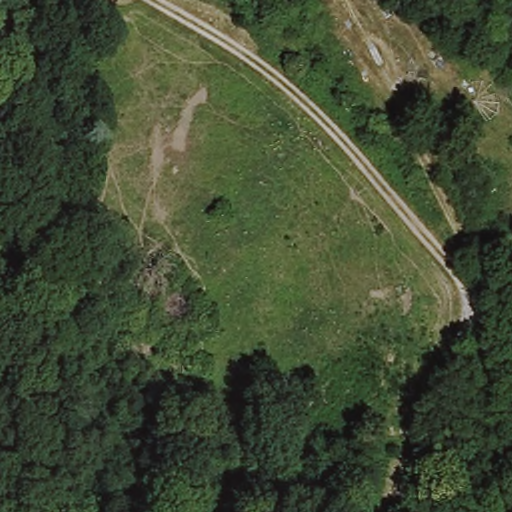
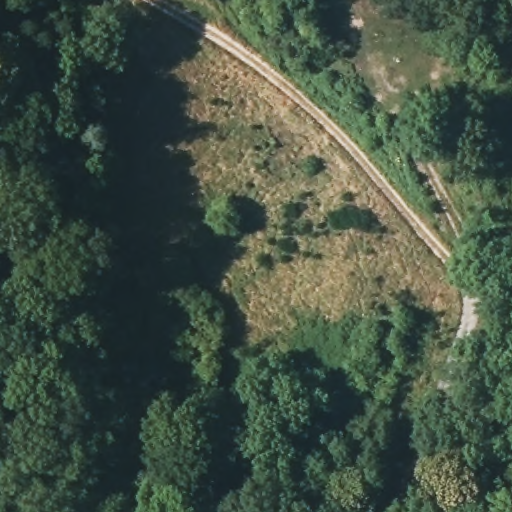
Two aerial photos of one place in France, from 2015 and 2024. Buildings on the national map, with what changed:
unchanged [(507,261),(504,282),(484,282),(487,259),(507,261)]

